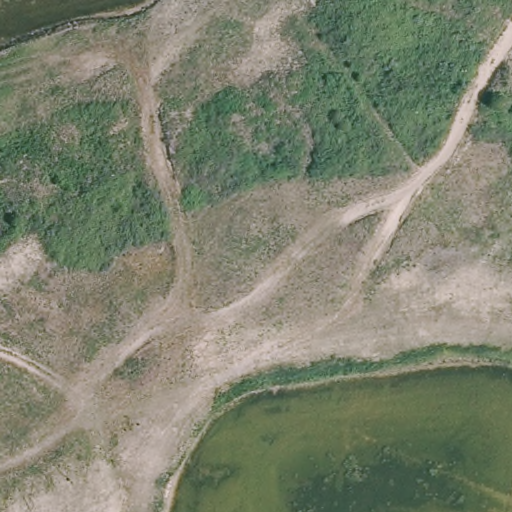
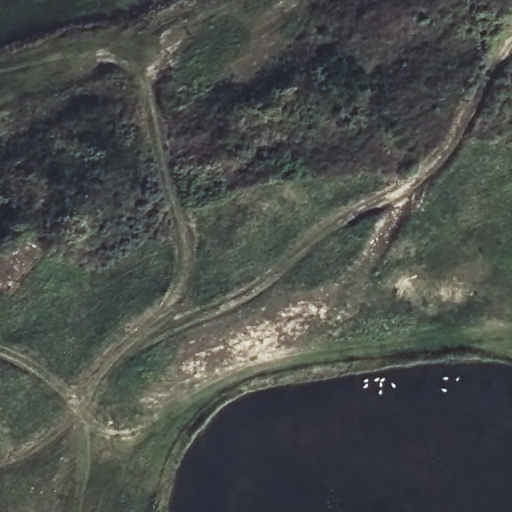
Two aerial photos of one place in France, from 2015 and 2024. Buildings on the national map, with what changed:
[]

